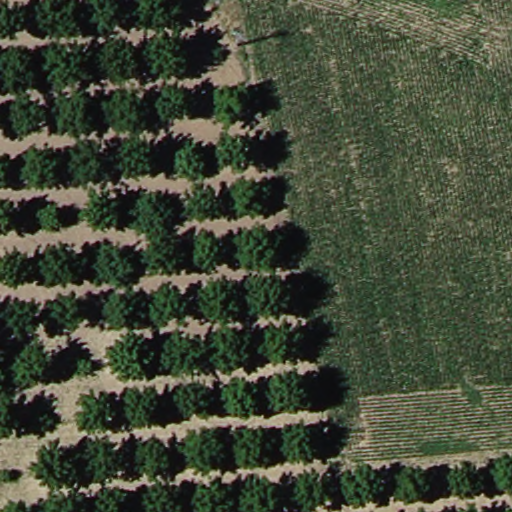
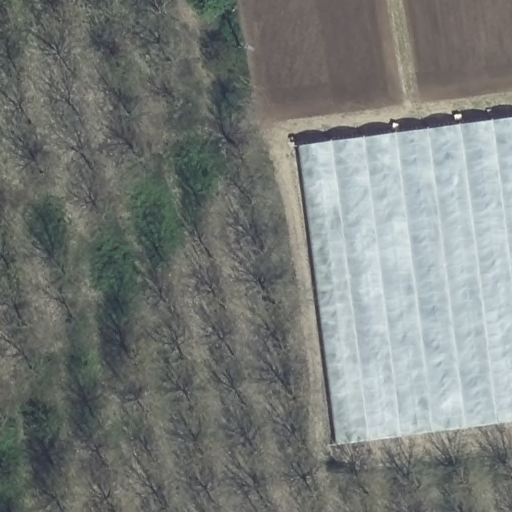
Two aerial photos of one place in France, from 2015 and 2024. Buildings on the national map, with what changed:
new [(512,116),(512,421),(334,445),(296,146),(512,116)]

